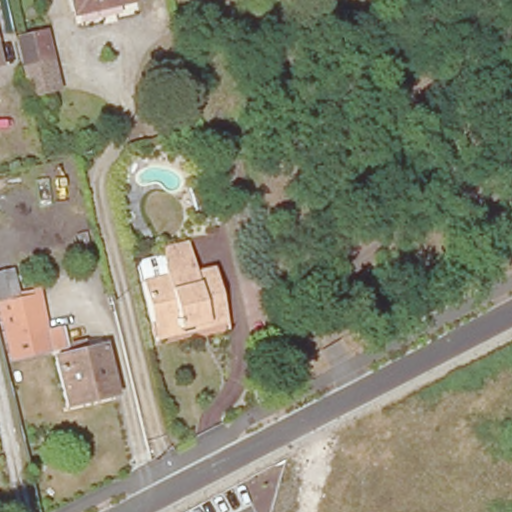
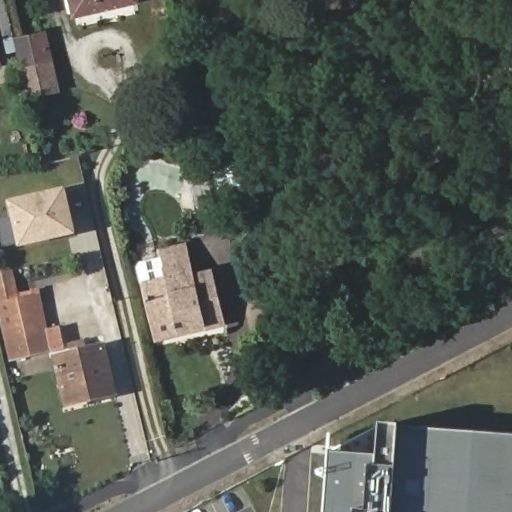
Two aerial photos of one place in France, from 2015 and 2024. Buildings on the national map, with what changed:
unchanged [(135,1),(68,14),(64,0),(135,0),(135,1)]
unchanged [(16,37),(42,32),(56,92),(31,98),(16,37)]
new [(18,248),(8,201),(65,188),(76,234),(18,248)]
demolished [(45,218),(51,250),(23,255),(16,223),(45,218)]
unchanged [(156,318),(147,280),(172,274),(166,248),(193,242),(199,269),(219,265),(230,320),(211,324),(160,335),(156,318)]
unchanged [(36,296),(43,332),(58,329),(63,348),(5,360),(0,335),(0,275),(11,270),(16,300),(36,296)]
unchanged [(105,345),(116,397),(63,408),(52,358),(51,357),(105,345)]
new [(375,457),(377,425),(397,427),(397,428),(474,433),(512,436),(512,512),(324,512),(328,454),(375,457)]

